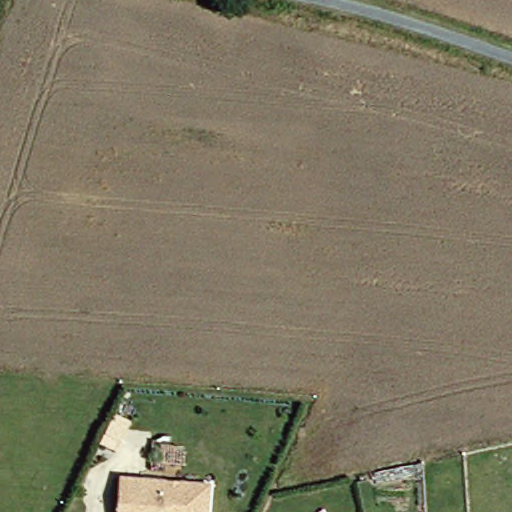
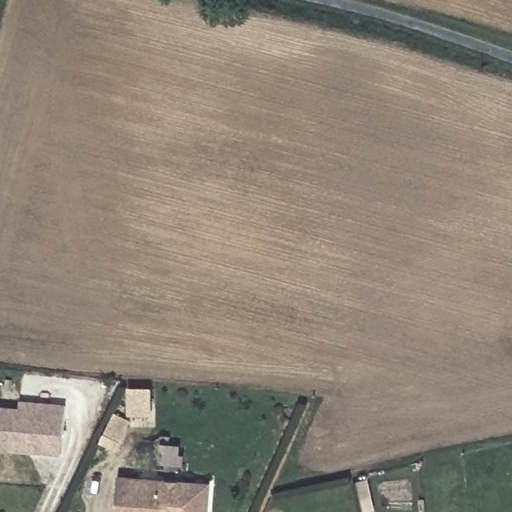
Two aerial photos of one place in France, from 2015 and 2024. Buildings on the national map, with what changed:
new [(101,445),(113,412),(126,417),(126,387),(152,386),(153,419),(131,419),(120,452),(101,445)]
new [(20,407),(21,401),(66,405),(63,456),(0,451),(0,406),(20,407)]
unchanged [(159,478),(159,483),(173,485),(173,480),(203,484),(199,512),(107,512),(114,471),(159,478)]

